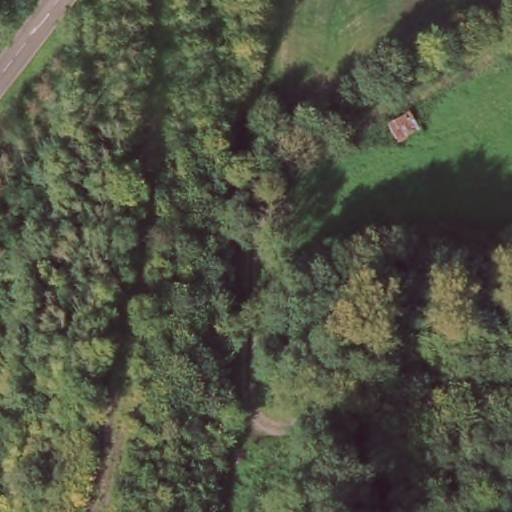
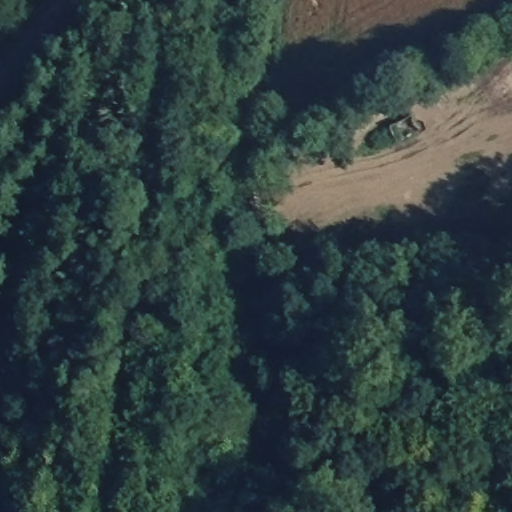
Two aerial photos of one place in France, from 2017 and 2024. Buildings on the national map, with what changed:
unchanged [(409,109),(421,129),(400,141),(389,122),(409,109)]

